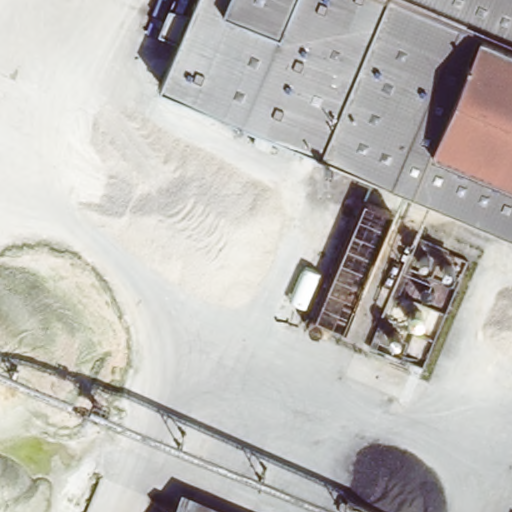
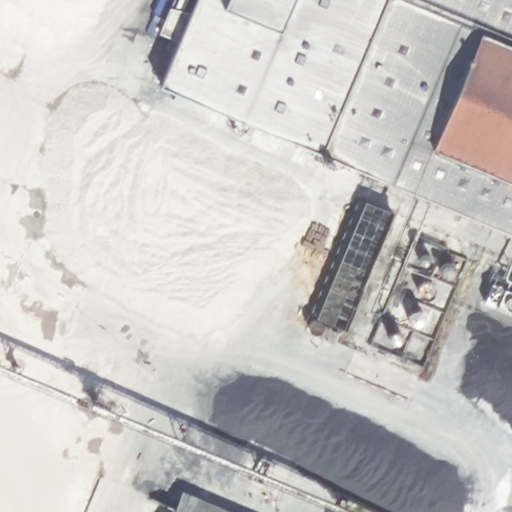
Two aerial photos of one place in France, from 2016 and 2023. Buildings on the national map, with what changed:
unchanged [(153,94),(191,0),(450,0),(349,172),(153,94)]
unchanged [(349,172),(450,0),(481,0),(512,13),(512,238),(349,172)]
unchanged [(481,0),(512,0),(512,13),(481,0)]
unchanged [(347,327),(319,315),(368,201),(396,213),(347,327)]
unchanged [(231,512),(186,512),(192,496),(231,512)]

